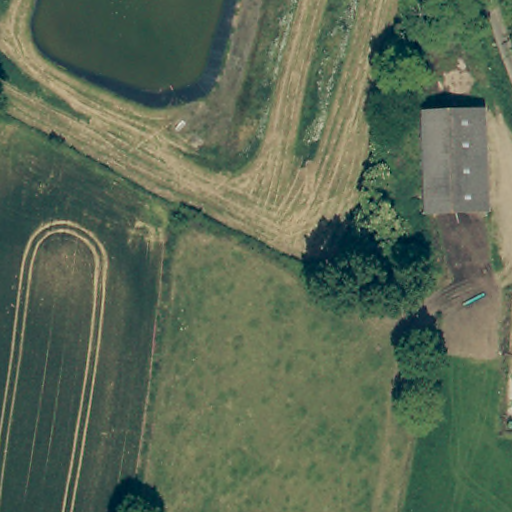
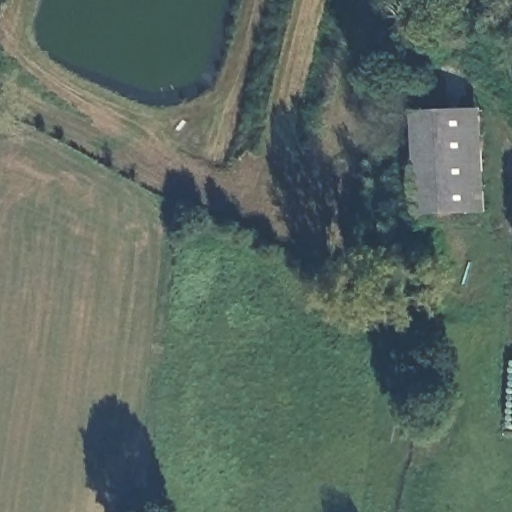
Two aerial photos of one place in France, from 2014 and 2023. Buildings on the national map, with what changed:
unchanged [(493,207),(426,212),(416,110),(482,102),(493,207)]

